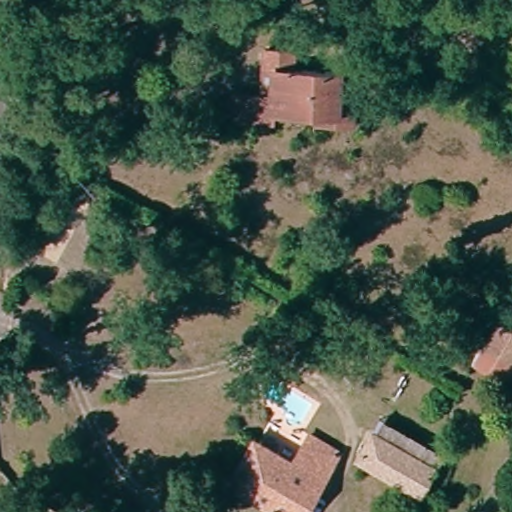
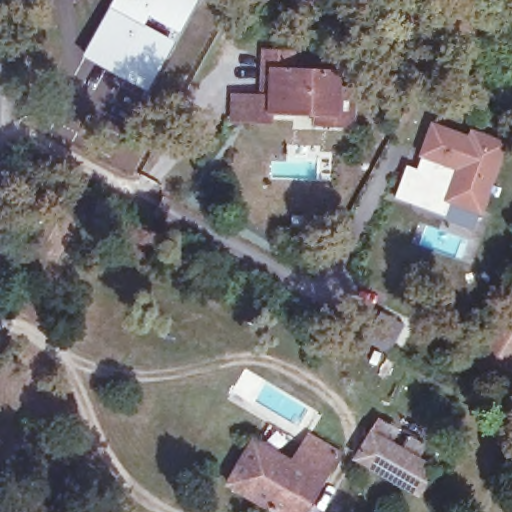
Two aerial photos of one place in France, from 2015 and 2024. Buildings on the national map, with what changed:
new [(115,0),(199,0),(179,33),(150,17),(145,25),(175,41),(148,91),(143,97),(121,86),(125,79),(82,56),(115,0)]
unchanged [(319,127),(319,117),(275,116),(273,123),(260,123),(230,121),(234,98),(262,98),(264,71),(265,53),(293,55),(294,72),(340,74),(339,92),(358,94),(356,129),(319,127)]
new [(407,164),(418,168),(422,157),(418,155),(431,121),(468,134),(470,130),(507,143),(482,215),(479,213),(473,229),(394,199),(407,164)]
new [(502,315),(512,321),(512,374),(506,385),(473,366),(502,315)]
unchanged [(384,415),(419,436),(445,452),(433,472),(416,462),(372,437),(384,415)]
unchanged [(278,512),(229,485),(255,439),(290,460),(308,431),(336,447),(342,450),(306,512),(278,512)]
unchanged [(417,499),(412,497),(356,465),(372,437),(416,462),(433,472),(417,499)]

